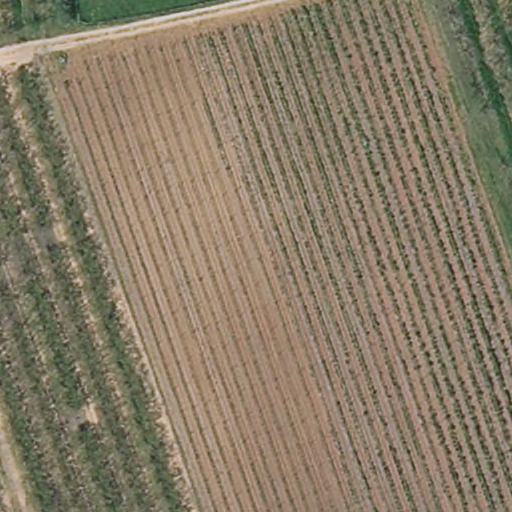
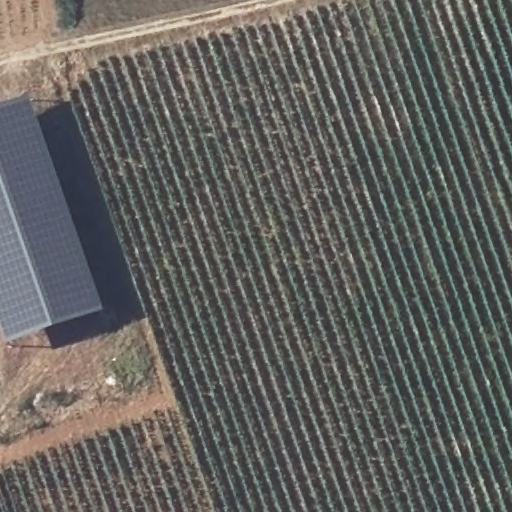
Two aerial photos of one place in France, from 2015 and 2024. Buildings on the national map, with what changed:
new [(30,100),(108,313),(10,347),(0,320),(0,111),(30,100)]

